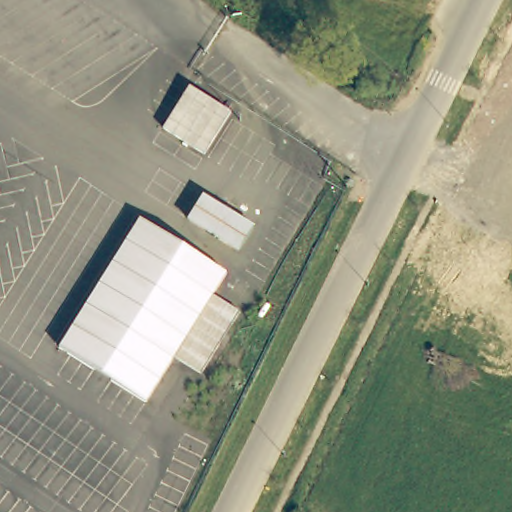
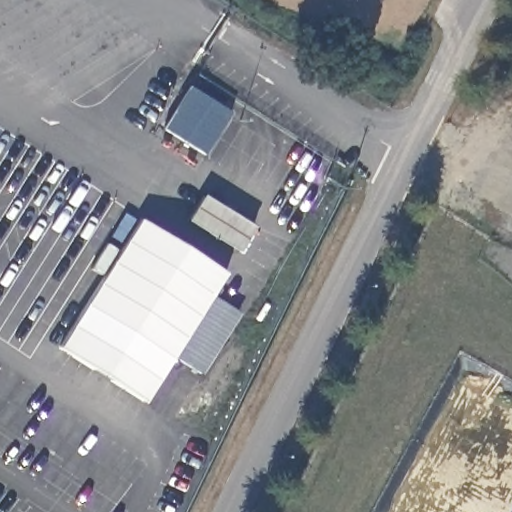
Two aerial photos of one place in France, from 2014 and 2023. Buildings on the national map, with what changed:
unchanged [(206,155),(164,128),(189,88),(232,113),(206,155)]
unchanged [(242,254),(187,220),(202,197),(256,229),(242,254)]
unchanged [(223,272),(209,294),(236,312),(195,373),(169,358),(139,402),(55,348),(139,219),(223,272)]

